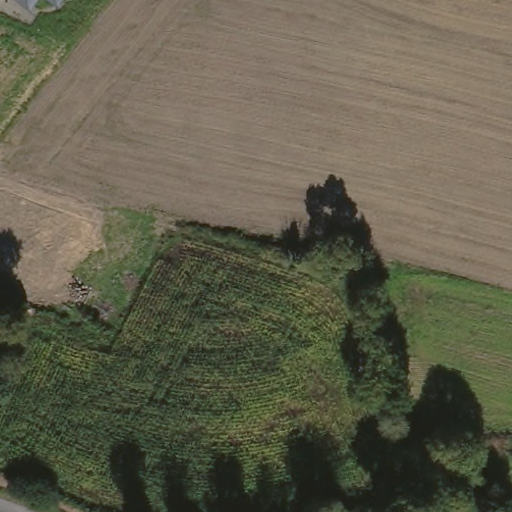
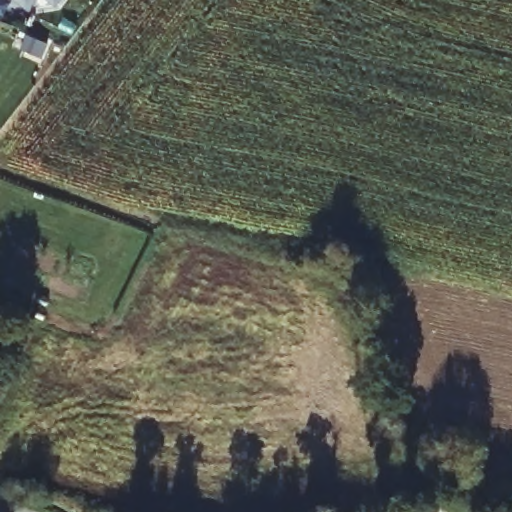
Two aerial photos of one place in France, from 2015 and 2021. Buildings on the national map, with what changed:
unchanged [(29,9),(17,0),(36,0),(29,9)]
unchanged [(57,5),(50,0),(61,0),(57,5)]

